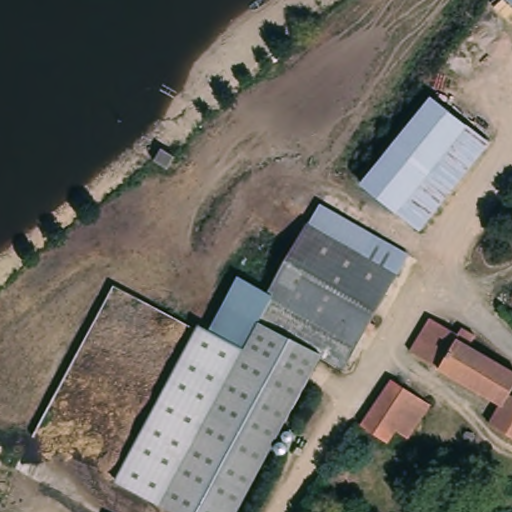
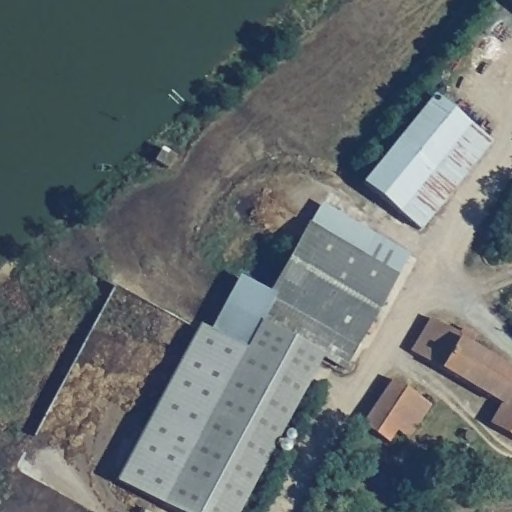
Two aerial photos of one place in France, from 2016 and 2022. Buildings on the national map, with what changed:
unchanged [(361,182),(431,97),(490,141),(419,230),(361,182)]
unchanged [(238,273),(269,290),(320,204),(413,254),(348,370),(323,355),(234,512),(177,512),(128,486),(238,273)]
unchanged [(449,327),(463,335),(467,327),(472,330),(482,337),(477,346),(478,347),(512,369),(512,431),(496,422),(508,405),(415,351),(434,319),(449,327)]
unchanged [(397,381),(400,376),(439,401),(419,436),(411,430),(406,436),(401,441),(370,422),(397,381)]

